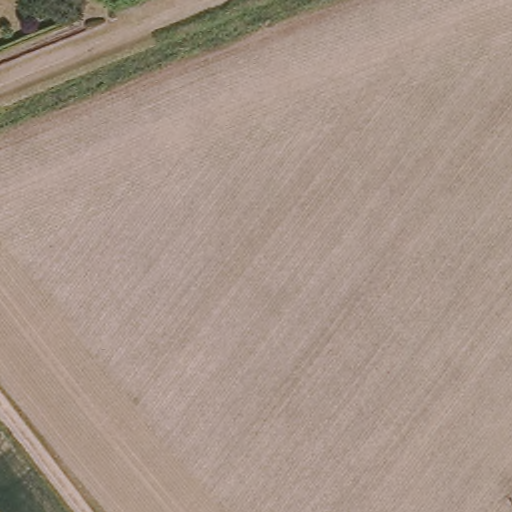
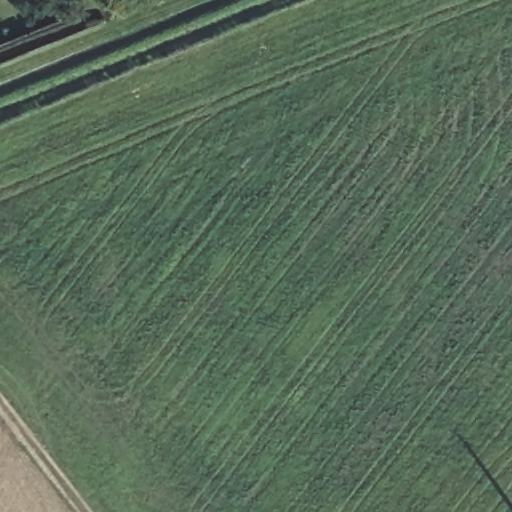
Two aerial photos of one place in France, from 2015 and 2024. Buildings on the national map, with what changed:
[]

